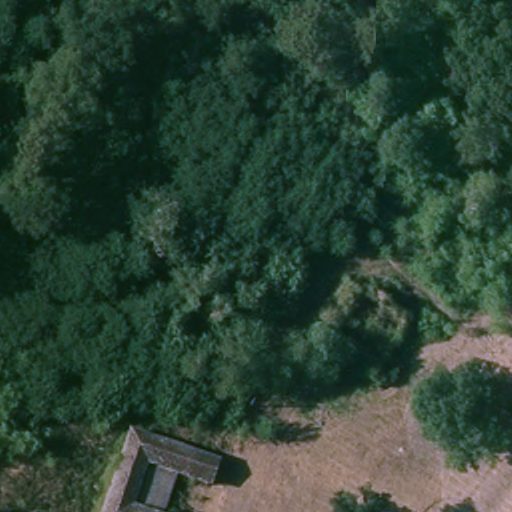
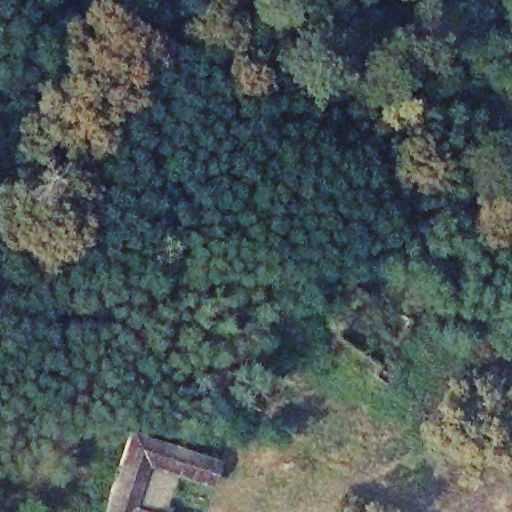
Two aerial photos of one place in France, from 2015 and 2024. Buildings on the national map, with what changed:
unchanged [(136,430),(212,454),(207,474),(191,469),(176,512),(103,512),(136,430)]

